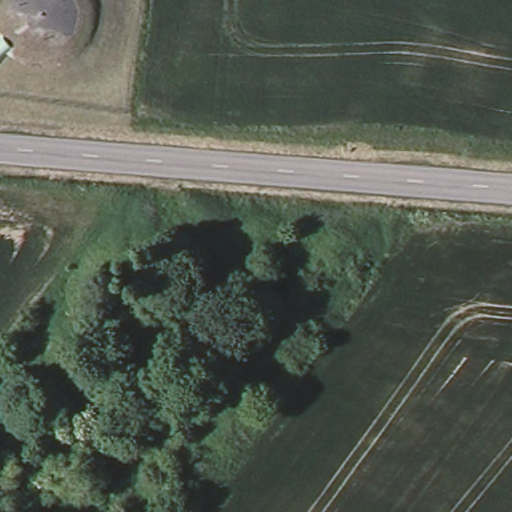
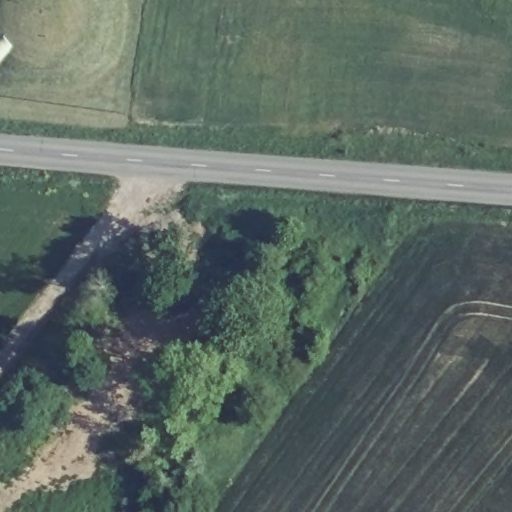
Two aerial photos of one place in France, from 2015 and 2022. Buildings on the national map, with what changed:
unchanged [(7,50),(11,55),(0,63),(0,42),(7,50)]

